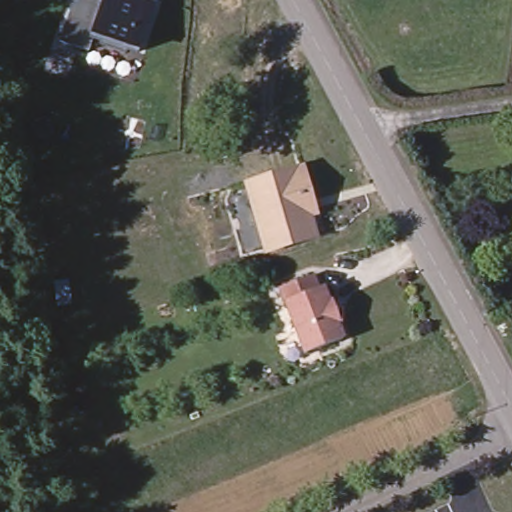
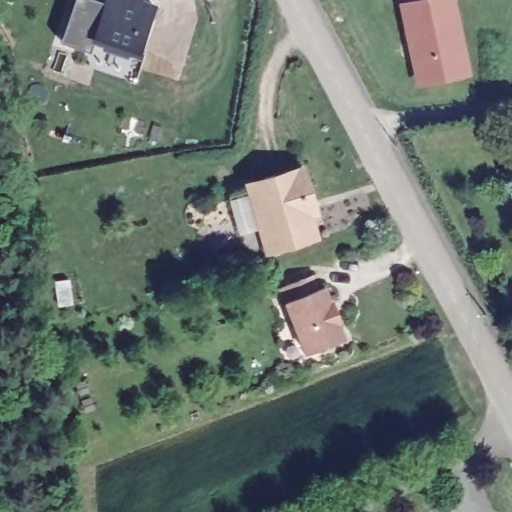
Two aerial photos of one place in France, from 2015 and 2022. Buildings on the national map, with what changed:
unchanged [(103,0),(146,0),(155,3),(138,56),(94,40),(90,51),(58,41),(72,0),(101,0),(102,0),(103,0)]
new [(415,87),(398,2),(407,0),(455,0),(472,76),(415,87)]
unchanged [(304,163),(320,214),(314,216),(320,237),(263,254),(242,181),(304,163)]
unchanged [(308,272),(312,286),(319,284),(323,299),(327,298),(330,307),(292,318),(280,280),(308,272)]
unchanged [(330,307),(335,321),(334,321),(339,335),(300,350),(292,318),(330,307)]

